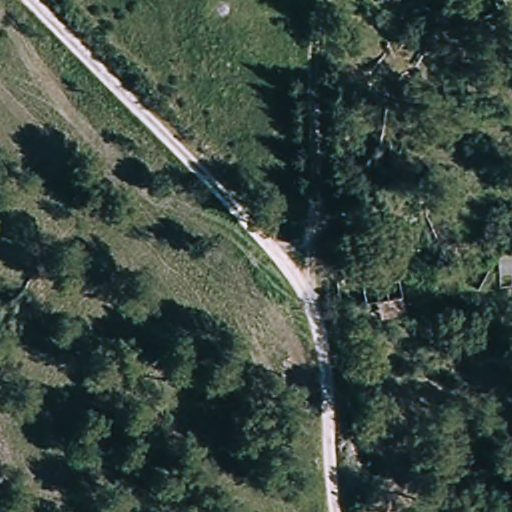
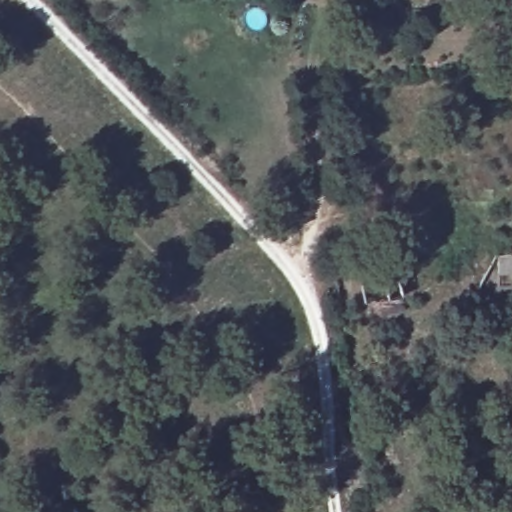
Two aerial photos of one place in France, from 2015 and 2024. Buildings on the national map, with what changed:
unchanged [(480,90),(479,72),(494,72),(495,90),(480,90)]
unchanged [(512,271),(500,272),(497,255),(512,254),(512,271)]
unchanged [(381,327),(378,311),(365,314),(360,288),(393,282),(395,290),(399,289),(403,306),(406,322),(381,327)]

